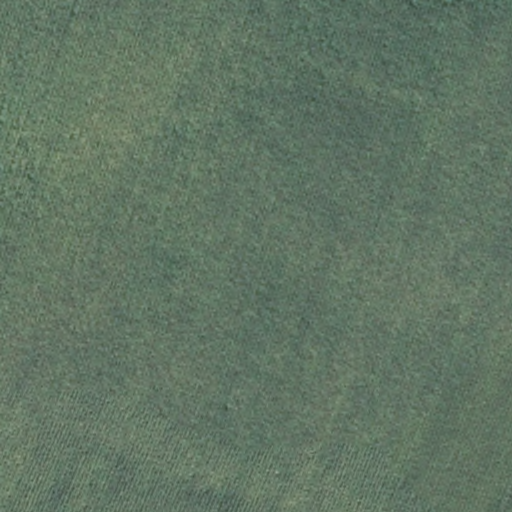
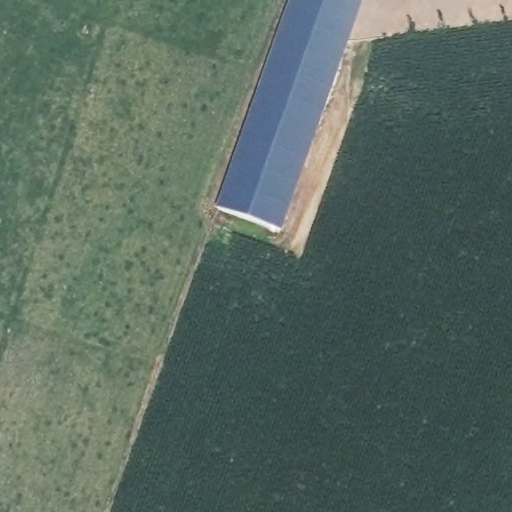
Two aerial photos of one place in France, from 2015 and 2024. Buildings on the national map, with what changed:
new [(217,208),(290,0),(364,0),(284,230),(217,208)]

